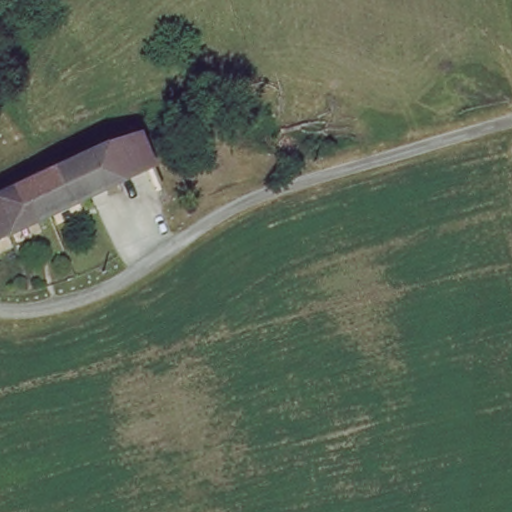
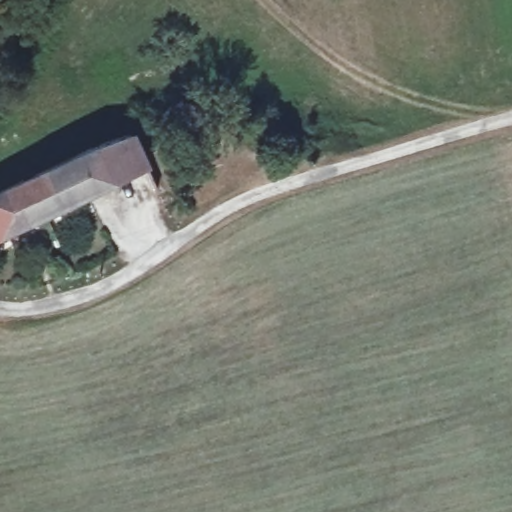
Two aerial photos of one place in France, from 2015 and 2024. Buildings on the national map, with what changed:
unchanged [(0,191),(134,131),(154,171),(0,240),(0,191)]

